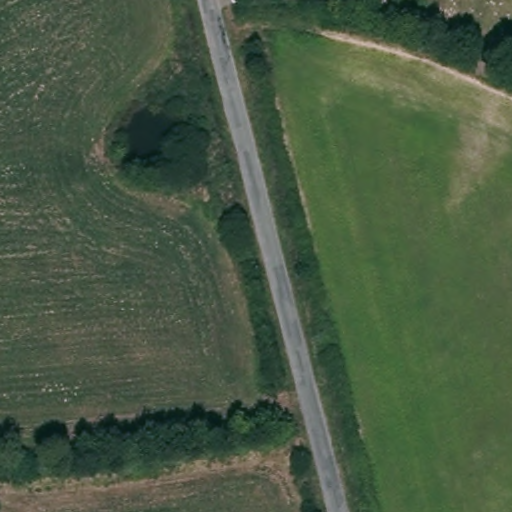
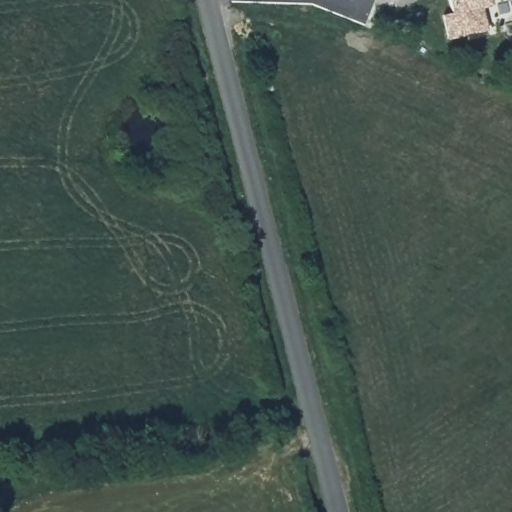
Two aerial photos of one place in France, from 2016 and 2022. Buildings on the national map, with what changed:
new [(485,8),(491,31),(452,40),(447,16),(456,14),(453,0),(493,0),(494,6),(485,8)]

